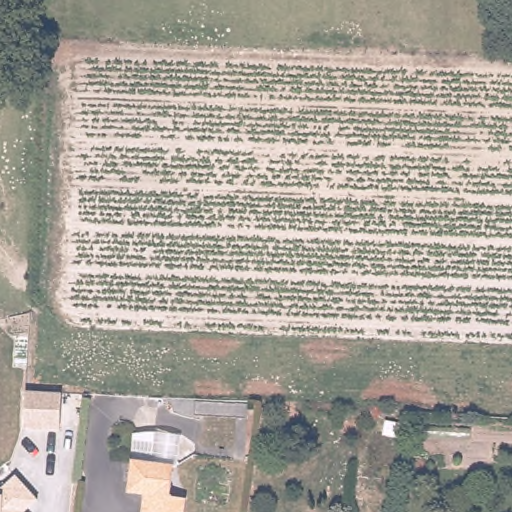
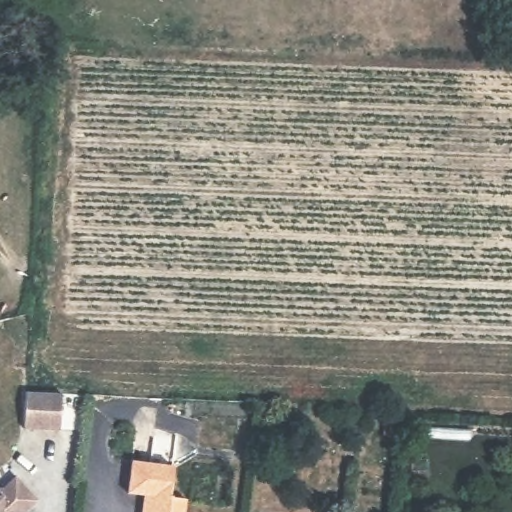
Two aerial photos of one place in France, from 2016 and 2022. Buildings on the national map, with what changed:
unchanged [(124,496),(127,465),(167,468),(166,501),(172,501),(185,502),(184,512),(140,512),(142,497),(124,496)]
unchanged [(3,487),(22,474),(46,502),(32,512),(0,512),(0,487),(3,487)]

